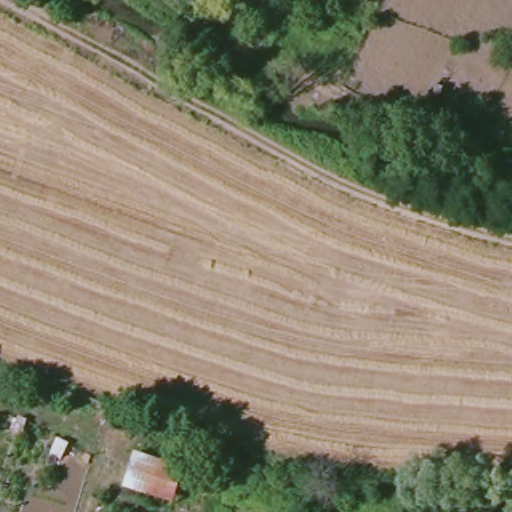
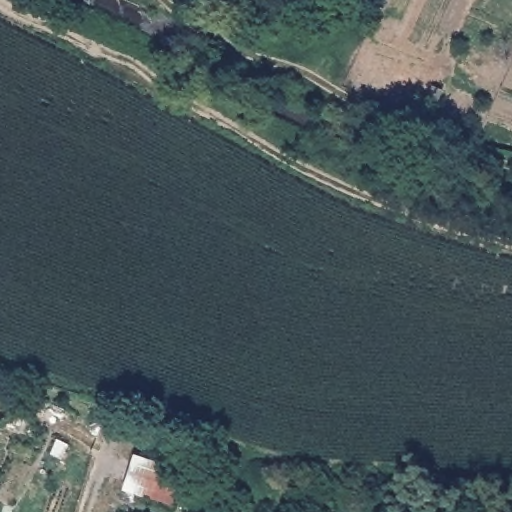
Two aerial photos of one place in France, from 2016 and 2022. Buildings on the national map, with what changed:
unchanged [(447,92),(442,108),(423,100),(428,85),(447,92)]
unchanged [(183,470),(170,509),(118,490),(132,452),(183,470)]

